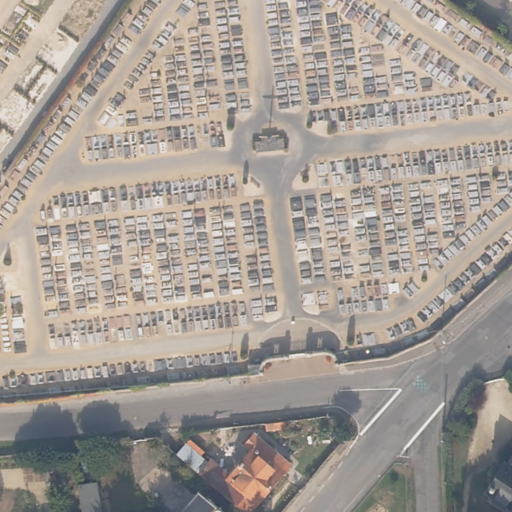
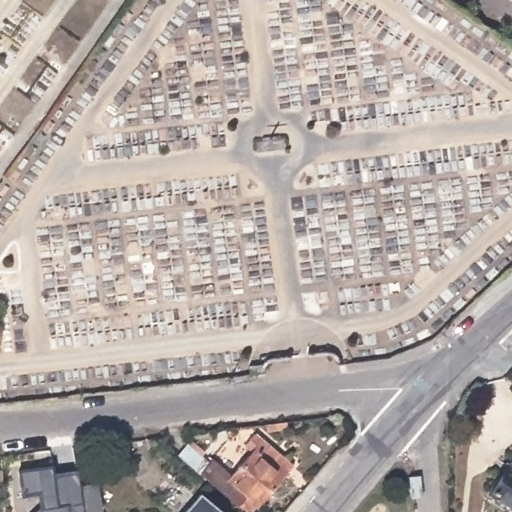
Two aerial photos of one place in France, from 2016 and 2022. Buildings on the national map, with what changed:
unchanged [(255,506),(242,495),(235,505),(175,454),(185,443),(203,458),(207,454),(231,475),(252,450),(245,444),(254,433),(261,440),(290,464),(255,506)]
new [(37,494),(20,496),(17,471),(50,466),(51,471),(74,468),(75,472),(72,473),(79,512),(34,512),(38,509),(37,494)]
unchanged [(502,475),(505,477),(512,467),(512,512),(511,512),(488,498),(502,475)]
unchanged [(90,471),(97,512),(79,512),(72,473),(90,471)]
unchanged [(221,512),(183,512),(197,494),(221,512)]

